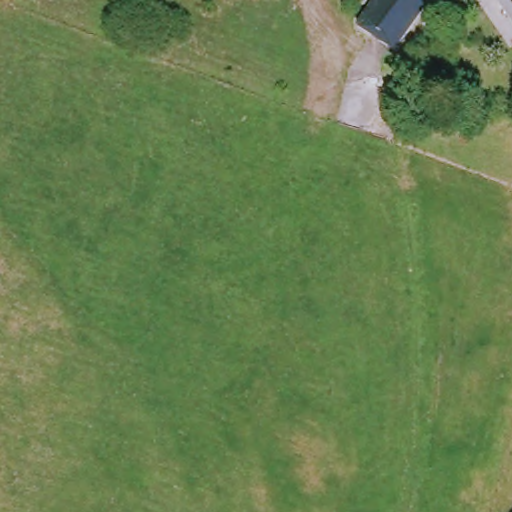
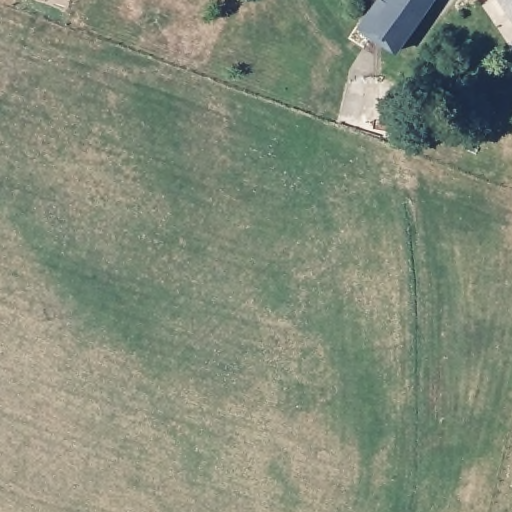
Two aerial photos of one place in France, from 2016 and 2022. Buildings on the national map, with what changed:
unchanged [(379,0),(381,1),(381,0),(429,0),(393,53),(361,29),(347,19),(361,0),(379,0)]
unchanged [(512,0),(512,28),(489,0),(512,0)]

